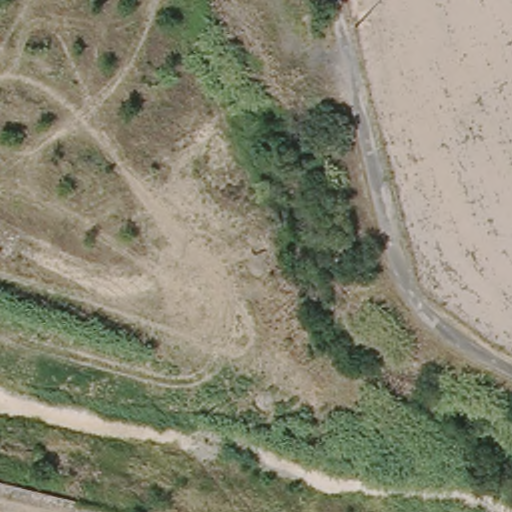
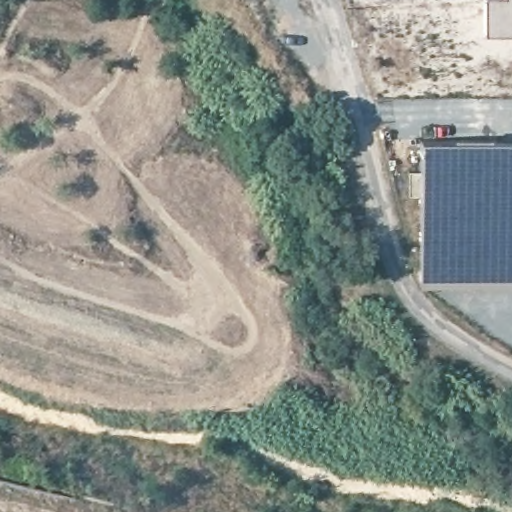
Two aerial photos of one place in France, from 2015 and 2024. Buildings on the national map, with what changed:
new [(486,37),(485,0),(512,0),(512,37),(486,37)]
new [(421,286),(421,196),(410,197),(409,170),(422,168),(422,139),(512,139),(512,286),(421,286)]

